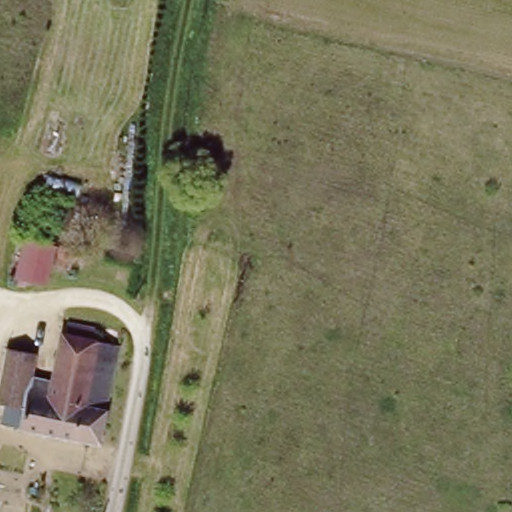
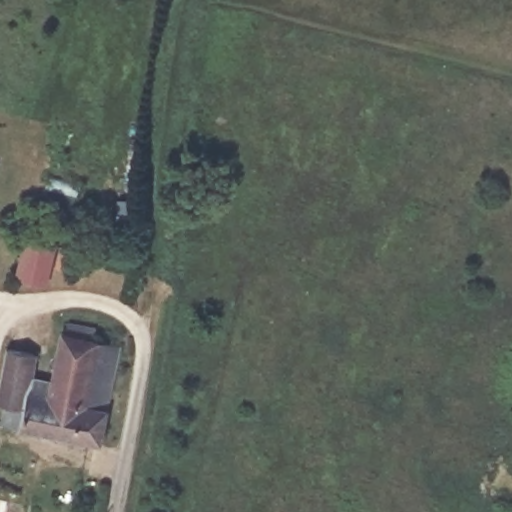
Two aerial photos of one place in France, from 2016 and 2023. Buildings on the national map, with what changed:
unchanged [(40,283),(10,275),(18,237),(48,245),(40,283)]
unchanged [(63,267),(49,265),(53,244),(68,247),(63,267)]
unchanged [(97,327),(97,338),(123,344),(103,443),(48,432),(5,422),(9,403),(0,402),(5,380),(11,347),(40,352),(36,376),(55,381),(65,332),(68,332),(70,321),(72,322),(97,327)]

